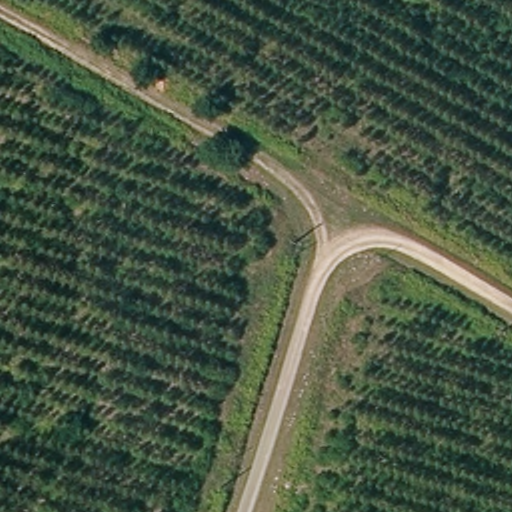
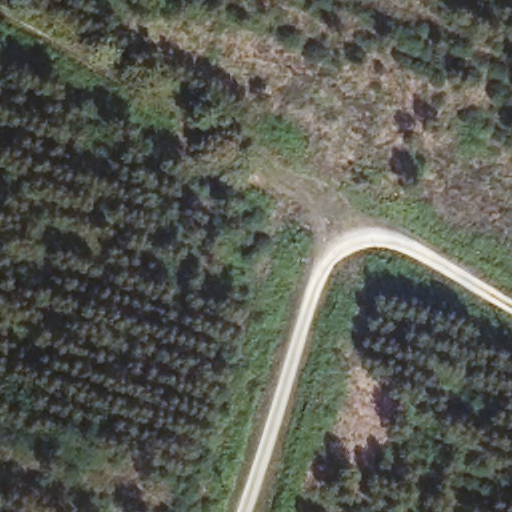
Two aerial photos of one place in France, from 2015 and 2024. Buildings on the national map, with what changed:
[]

